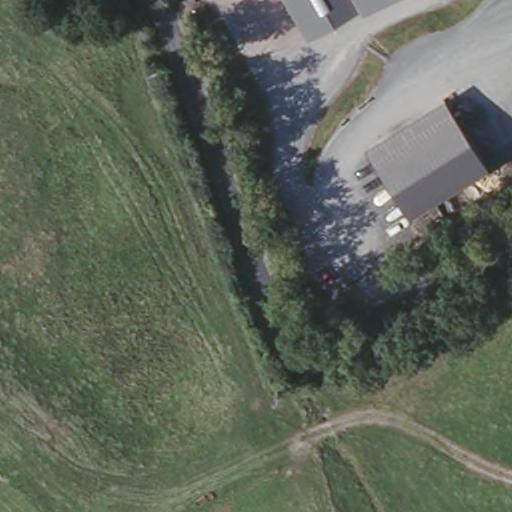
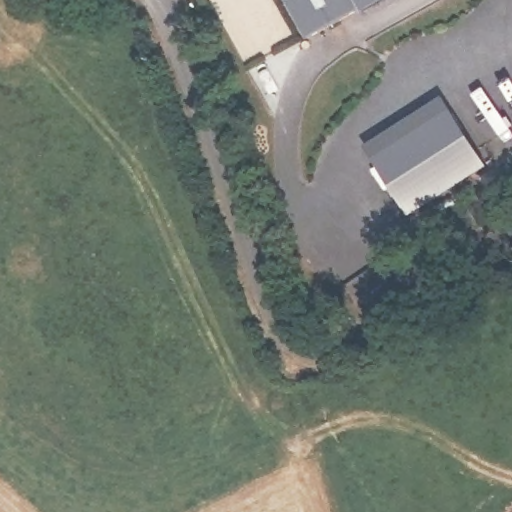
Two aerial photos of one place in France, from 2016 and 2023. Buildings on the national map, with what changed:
unchanged [(361,14),(358,10),(307,39),(285,0),(386,0),(361,14)]
unchanged [(411,218),(365,146),(443,98),(489,167),(411,218)]

